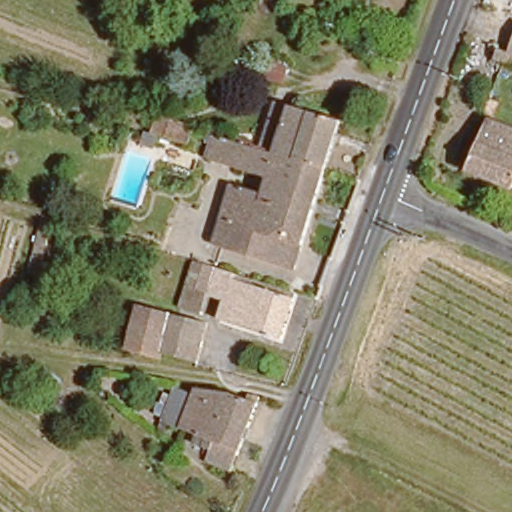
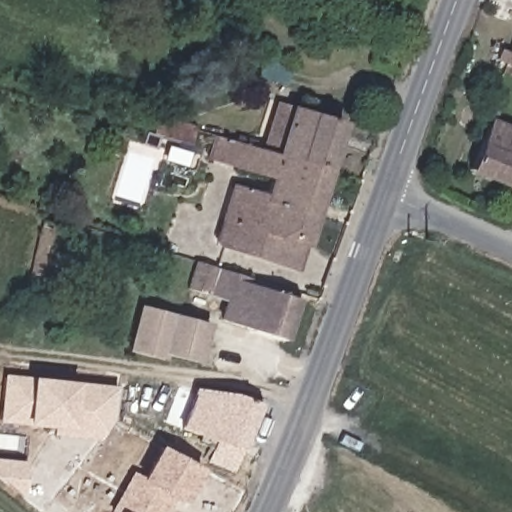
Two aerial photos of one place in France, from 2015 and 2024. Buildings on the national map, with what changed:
unchanged [(503,0),(512,0),(512,3),(503,0)]
unchanged [(506,60),(493,54),(496,46),(506,50),(512,35),(512,61),(506,60)]
unchanged [(386,40),(380,57),(366,53),(371,36),(386,40)]
unchanged [(251,136),(257,139),(263,122),(270,99),(289,105),(305,110),(309,103),(335,111),(333,119),(345,123),(329,172),(248,146),(251,136)]
unchanged [(472,171),(489,121),(512,129),(512,188),(472,171)]
unchanged [(201,158),(148,142),(151,131),(193,143),(199,131),(209,134),(201,158)]
unchanged [(299,266),(220,241),(236,186),(263,194),(268,179),(207,159),(216,136),(248,146),(329,172),(299,266)]
demolished [(34,215),(43,218),(30,268),(22,266),(34,215)]
new [(46,221),(57,223),(44,277),(33,275),(46,221)]
unchanged [(273,339),(212,320),(221,296),(202,290),(194,314),(179,309),(193,263),(288,294),(273,339)]
unchanged [(121,361),(135,310),(201,329),(191,362),(159,355),(158,366),(121,361)]
new [(51,437),(51,428),(27,426),(0,424),(0,404),(3,375),(30,378),(76,383),(117,387),(113,420),(99,441),(51,437)]
unchanged [(175,422),(170,419),(187,389),(238,407),(242,400),(255,406),(229,479),(202,469),(209,451),(180,440),(174,452),(164,448),(175,422)]
new [(130,472),(141,478),(158,446),(200,469),(182,505),(172,500),(165,512),(108,512),(130,472)]

